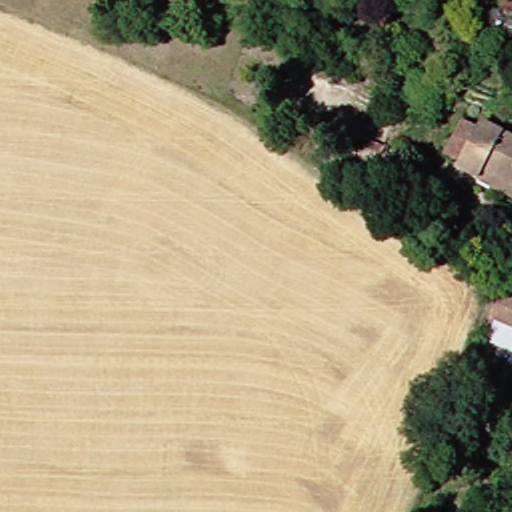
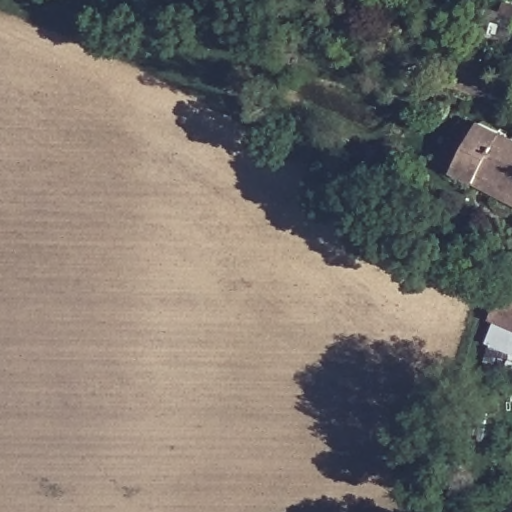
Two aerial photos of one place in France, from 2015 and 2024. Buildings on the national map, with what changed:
unchanged [(461,162),(481,121),(512,136),(512,174),(492,165),(487,174),(461,162)]
unchanged [(492,165),(512,174),(512,186),(487,174),(492,165)]
unchanged [(502,326),(511,295),(512,296),(512,329),(502,326)]

